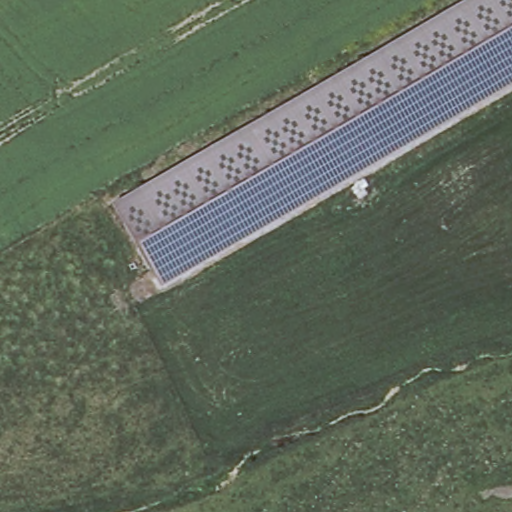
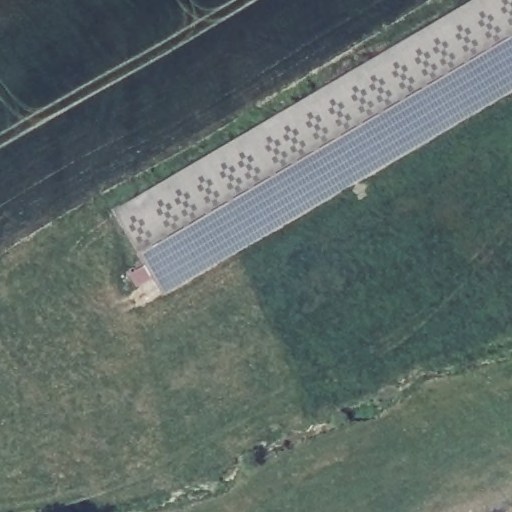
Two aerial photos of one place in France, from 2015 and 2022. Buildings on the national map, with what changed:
unchanged [(491,0),(512,0),(512,75),(156,282),(118,217),(491,0)]

